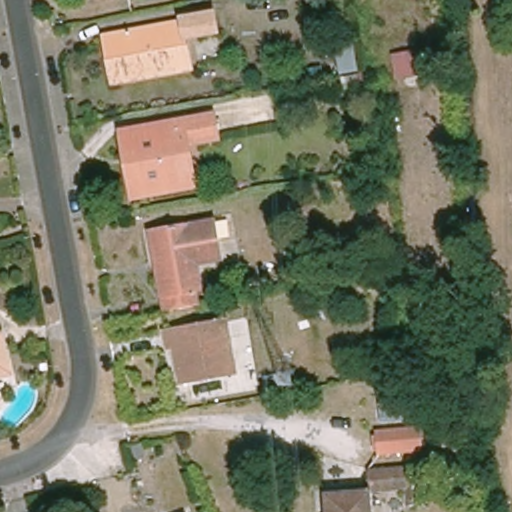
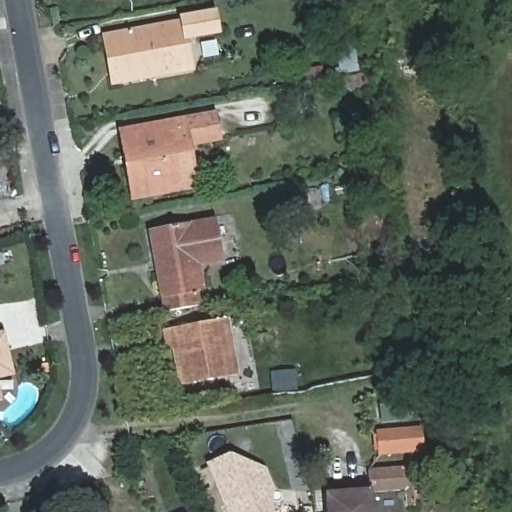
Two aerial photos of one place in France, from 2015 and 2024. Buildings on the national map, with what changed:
unchanged [(110,37),(120,35),(188,23),(187,19),(218,14),(222,33),(192,38),(197,69),(162,76),(117,83),(110,37)]
unchanged [(131,160),(126,132),(217,116),(222,140),(192,144),(200,187),(148,197),(138,198),(131,160)]
unchanged [(203,285),(206,301),(170,307),(167,292),(155,228),(219,216),(223,238),(226,256),(202,260),(207,284),(203,285)]
unchanged [(236,373),(181,383),(175,346),(169,347),(166,333),(227,322),(236,373)]
unchanged [(0,379),(0,342),(9,377),(0,379)]
unchanged [(422,451),(380,454),(378,433),(420,429),(422,451)]
new [(230,455),(264,465),(284,512),(225,512),(206,465),(230,455)]
unchanged [(326,512),(325,493),(370,490),(368,469),(412,466),(413,491),(372,494),(374,512),(326,512)]

